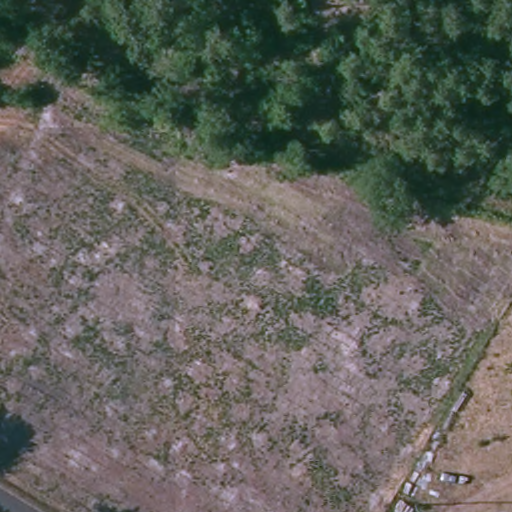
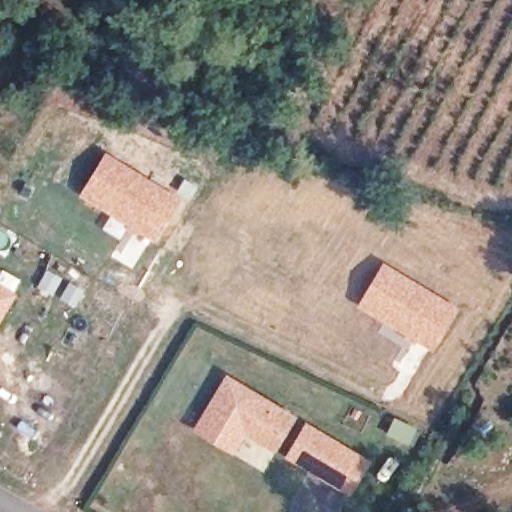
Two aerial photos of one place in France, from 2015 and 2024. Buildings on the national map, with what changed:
new [(180,199),(154,242),(138,233),(136,236),(126,230),(129,225),(79,196),(107,151),(180,199)]
new [(459,309),(432,352),(416,342),(414,346),(405,340),(407,335),(358,307),(384,263),(459,309)]
new [(18,295),(0,324),(0,283),(18,295)]
unchanged [(229,378),(293,416),(276,446),(245,428),(233,448),(199,428),(229,378)]
new [(372,461),(350,497),(285,458),(307,422),(372,461)]

